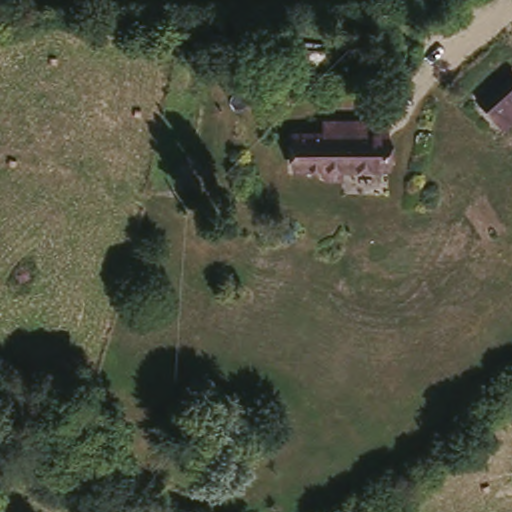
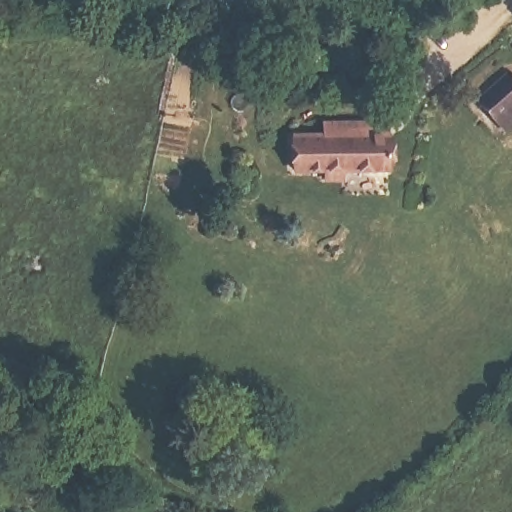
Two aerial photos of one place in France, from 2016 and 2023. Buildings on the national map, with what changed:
unchanged [(512,85),(512,133),(502,140),(478,108),(512,85)]
unchanged [(380,120),(383,170),(338,174),(337,185),(318,186),(317,175),(288,177),(286,142),(315,139),(316,125),(380,120)]

